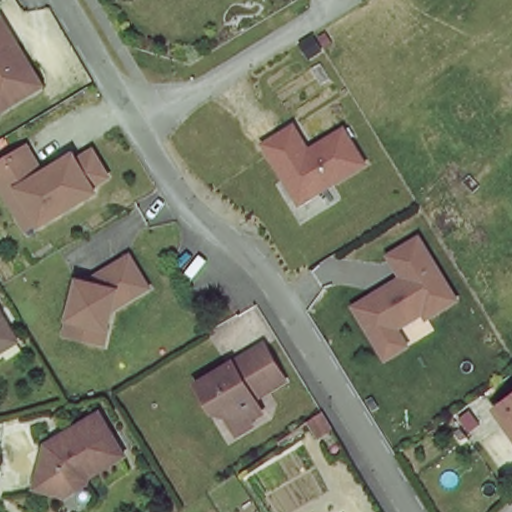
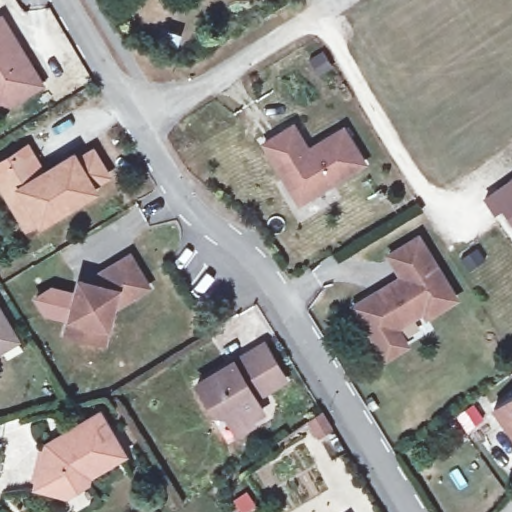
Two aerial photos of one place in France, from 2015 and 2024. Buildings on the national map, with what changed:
unchanged [(1,46),(10,41),(37,85),(0,107),(0,45),(1,46)]
unchanged [(293,122),(307,144),(343,123),(371,165),(298,206),(259,143),(293,122)]
unchanged [(3,196),(0,192),(0,153),(14,144),(22,139),(39,166),(69,147),(73,153),(89,143),(104,168),(88,178),(91,183),(36,216),(21,226),(3,196)]
new [(505,215),(509,212),(505,206),(494,214),(484,200),(512,181),(512,225),(505,215)]
unchanged [(383,354),(376,342),(352,303),(373,290),(375,293),(402,276),(386,251),(415,233),(453,294),(424,312),(421,307),(393,324),(397,329),(404,341),(383,354)]
unchanged [(86,337),(67,333),(80,280),(98,285),(101,273),(131,255),(149,286),(134,294),(117,290),(108,327),(105,342),(86,337)]
unchanged [(12,334),(16,340),(0,349),(0,313),(12,334)]
unchanged [(239,434),(230,419),(220,403),(212,408),(198,385),(234,363),(237,368),(251,359),(248,354),(265,344),(286,379),(256,398),(264,411),(251,419),(254,424),(239,434)]
unchanged [(512,438),(491,406),(512,393),(512,438)]
unchanged [(95,416),(121,457),(85,479),(83,486),(62,499),(35,493),(42,454),(52,455),(54,446),(51,443),(95,416)]

